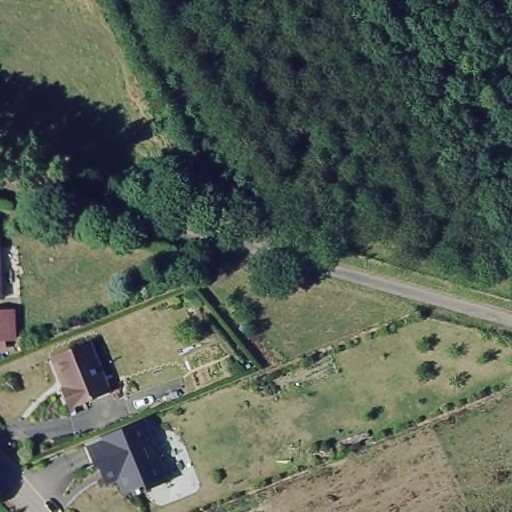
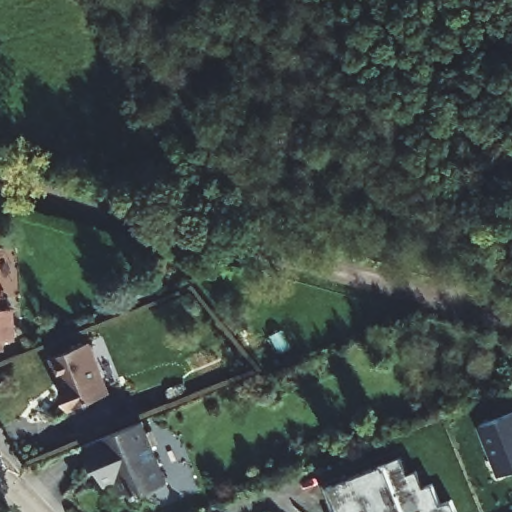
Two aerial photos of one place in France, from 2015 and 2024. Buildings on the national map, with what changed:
unchanged [(9,342),(0,342),(0,311),(5,311),(9,342)]
unchanged [(88,341),(110,394),(67,410),(59,391),(62,389),(52,357),(88,341)]
new [(512,412),(512,470),(500,475),(480,425),(512,412)]
unchanged [(120,480),(104,487),(89,444),(149,422),(170,482),(126,500),(120,480)]
new [(377,470),(377,468),(396,460),(403,478),(412,475),(419,492),(429,488),(436,509),(447,504),(451,512),(331,512),(324,491),(377,470)]

